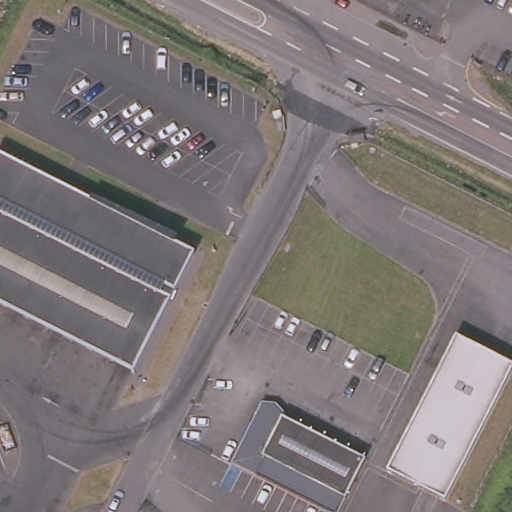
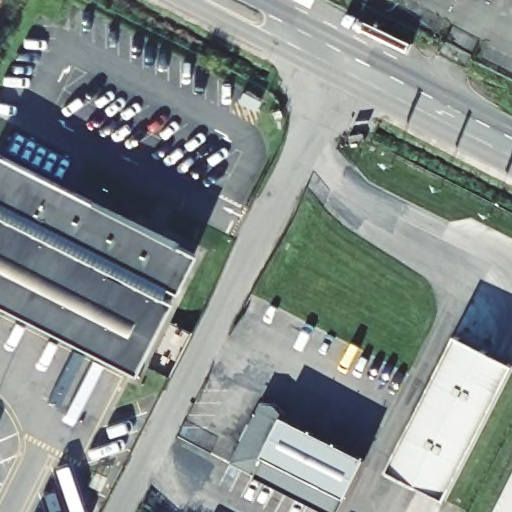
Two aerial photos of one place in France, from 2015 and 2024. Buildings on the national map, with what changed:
unchanged [(140,230),(139,235),(157,239),(190,256),(171,294),(160,289),(156,299),(166,303),(130,376),(0,310),(0,160),(140,230)]
unchanged [(512,366),(444,500),(387,470),(454,337),(512,366)]
unchanged [(286,415),(283,421),(366,462),(341,512),(324,512),(231,466),(261,403),(276,405),(286,415)]
unchanged [(512,512),(497,512),(512,483),(512,512)]

